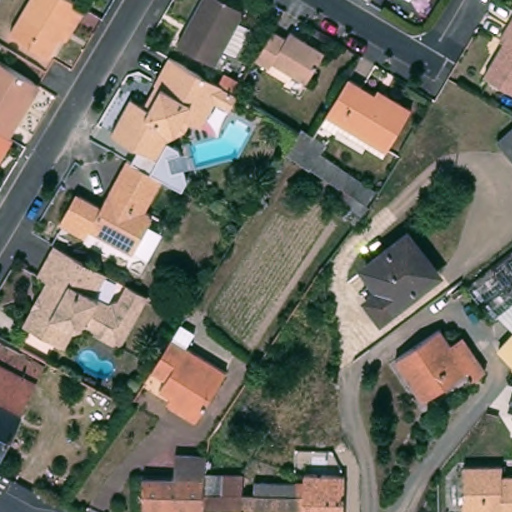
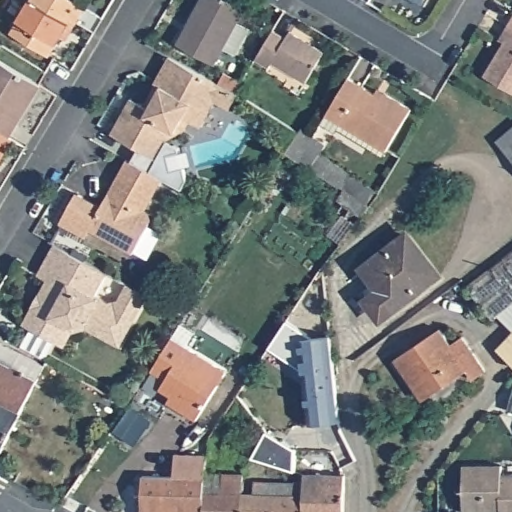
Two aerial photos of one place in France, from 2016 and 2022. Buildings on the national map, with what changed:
unchanged [(56,40),(45,58),(7,35),(28,0),(64,0),(81,10),(71,27),(62,43),(56,40)]
unchanged [(232,53),(220,46),(211,62),(174,42),(197,0),(225,0),(240,9),(234,19),(246,26),(232,53)]
unchanged [(410,1),(409,0),(411,0),(410,1)]
unchanged [(511,15),(512,16),(512,33),(503,28),(511,15)]
unchanged [(500,46),(495,42),(503,28),(512,33),(512,98),(480,79),(500,46)]
unchanged [(270,29),(282,38),(286,33),(320,52),(303,80),(270,61),(265,67),(252,59),(270,29)]
unchanged [(233,96),(235,97),(226,113),(212,106),(199,129),(183,120),(164,130),(159,138),(165,141),(154,162),(108,135),(127,100),(139,107),(151,86),(166,59),(222,90),(233,96)]
unchanged [(0,137),(0,66),(35,88),(4,139),(0,137)]
unchanged [(339,124),(336,129),(322,120),(328,112),(349,76),(376,93),(380,88),(385,91),(413,108),(386,153),(339,124)]
unchanged [(512,123),(512,160),(494,139),(512,123)]
unchanged [(377,190),(368,203),(366,201),(360,211),(338,197),(345,187),(288,149),(287,151),(273,139),(278,132),(292,142),(300,129),(302,126),(314,135),(318,137),(327,143),(323,149),(321,151),(377,190)]
unchanged [(4,139),(9,142),(0,156),(0,137),(4,139)]
unchanged [(142,215),(146,217),(148,218),(149,218),(150,220),(150,222),(130,256),(86,231),(81,240),(56,225),(73,196),(97,210),(124,161),(160,182),(142,215)]
unchanged [(407,233),(437,272),(381,315),(370,298),(382,288),(366,265),(407,233)]
unchanged [(25,321),(34,304),(33,303),(40,290),(40,291),(49,277),(39,272),(56,242),(95,264),(150,296),(136,321),(122,346),(89,327),(74,329),(66,343),(60,340),(59,339),(49,358),(47,357),(22,343),(32,325),(25,321)]
unchanged [(512,306),(490,322),(490,323),(463,288),(512,250),(512,306)]
unchanged [(512,332),(505,340),(490,323),(512,306),(512,332)]
new [(310,424),(302,367),(270,346),(287,320),(311,336),(330,334),(339,421),(310,424)]
unchanged [(435,332),(446,347),(457,340),(480,374),(469,381),(463,372),(420,401),(392,361),(435,332)]
unchanged [(512,367),(495,351),(505,340),(512,332),(512,367)]
unchanged [(167,393),(157,386),(163,377),(149,368),(162,346),(167,337),(222,371),(194,417),(172,405),(164,399),(167,393)]
unchanged [(40,370),(1,449),(0,448),(0,341),(44,364),(40,370)]
demolished [(318,424),(312,376),(335,373),(335,374),(340,422),(318,424)]
new [(297,448),(295,470),(254,458),(266,431),(297,448)]
unchanged [(159,480),(169,480),(170,457),(204,459),(201,475),(239,476),(238,496),(237,512),(139,512),(139,479),(159,480)]
unchanged [(461,510),(461,467),(498,467),(499,477),(512,477),(512,512),(500,512),(499,510),(461,510)]
unchanged [(300,478),(340,478),(339,512),(299,512),(300,483),(300,478)]
unchanged [(251,484),(291,485),(291,482),(300,483),(299,512),(237,512),(238,496),(251,496),(251,484)]

